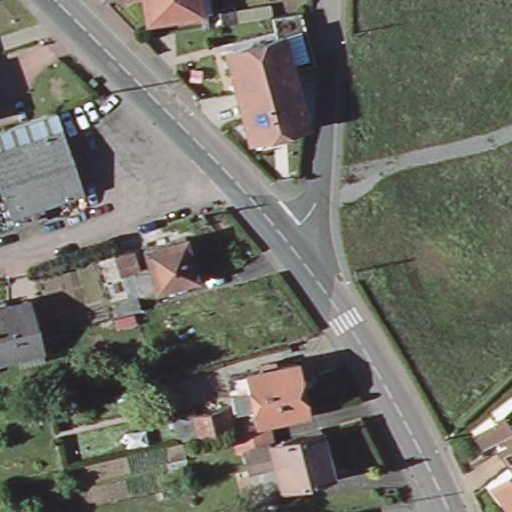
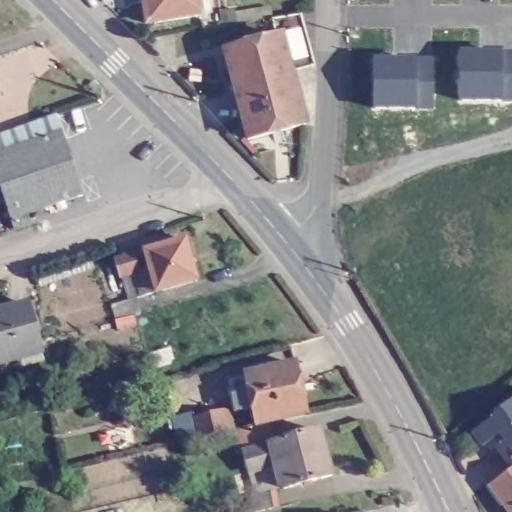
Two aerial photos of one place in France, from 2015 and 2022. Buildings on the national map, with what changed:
unchanged [(146,23),(142,0),(197,0),(199,14),(146,23)]
unchanged [(270,22),(300,17),(304,34),(313,67),(288,74),(290,80),(234,95),(223,56),(240,50),(237,40),(247,37),(250,47),(275,40),(270,22)]
new [(512,104),(459,102),(461,47),(512,49),(512,104)]
new [(435,110),(372,109),(372,56),(432,55),(435,110)]
unchanged [(290,80),(304,127),(247,143),(234,95),(290,80)]
unchanged [(0,153),(0,135),(58,114),(65,131),(0,153)]
unchanged [(65,131),(70,149),(0,173),(0,153),(65,131)]
unchanged [(17,229),(14,218),(12,211),(0,178),(0,173),(70,149),(83,187),(86,194),(45,208),(48,219),(17,229)]
unchanged [(142,250),(183,239),(195,280),(153,291),(147,267),(142,250)]
unchanged [(113,317),(109,303),(127,298),(121,277),(118,277),(113,258),(132,253),(137,271),(147,267),(153,291),(134,297),(137,311),(113,317)]
unchanged [(30,302),(41,341),(43,349),(0,362),(0,310),(30,302)]
unchanged [(248,373),(300,362),(310,412),(260,423),(255,402),(245,405),(243,397),(253,395),(248,373)]
unchanged [(480,444),(471,431),(491,417),(492,418),(497,416),(495,412),(512,399),(512,512),(510,512),(488,482),(509,467),(489,438),(480,444)]
unchanged [(223,407),(229,430),(199,437),(193,415),(223,407)]
unchanged [(269,466),(239,473),(233,453),(272,442),(322,428),(335,472),(285,487),(279,466),(270,468),(269,466)]

